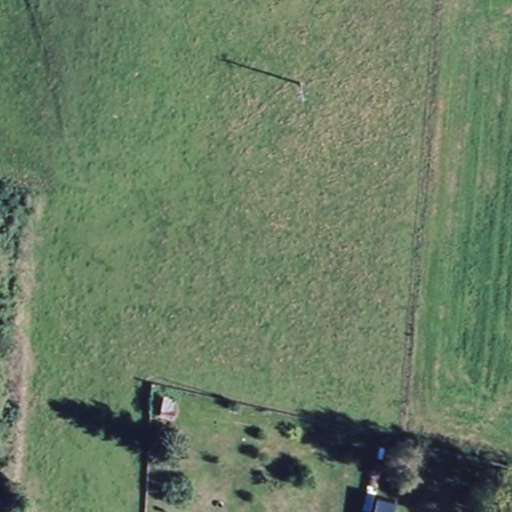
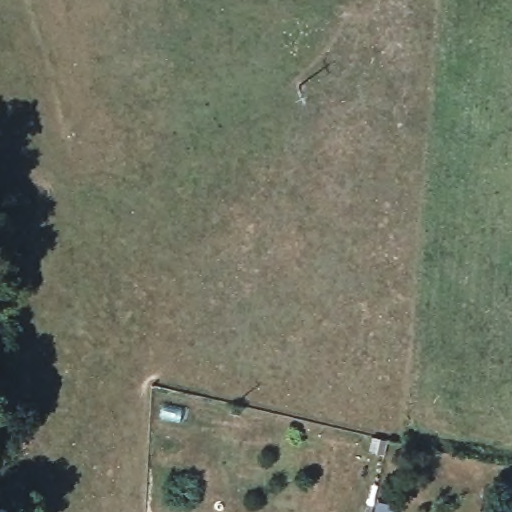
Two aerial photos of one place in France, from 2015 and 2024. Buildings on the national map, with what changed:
unchanged [(512,484),(512,512),(506,512),(511,483),(512,484)]

